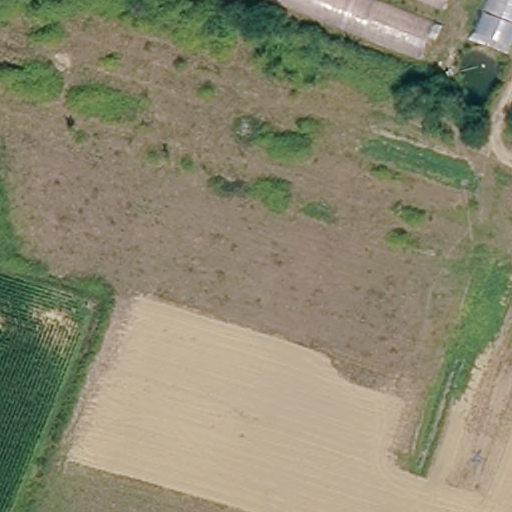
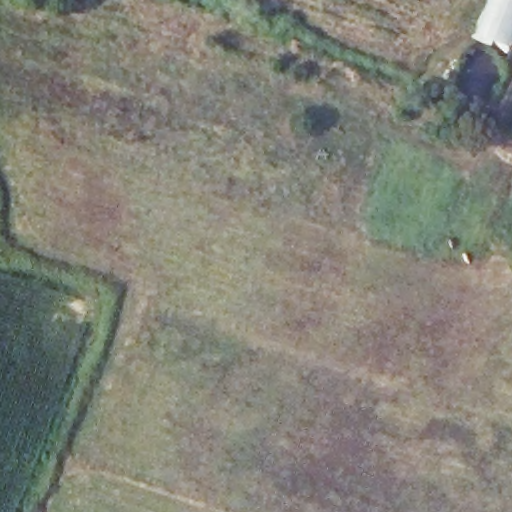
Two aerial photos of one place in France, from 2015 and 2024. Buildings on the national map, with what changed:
demolished [(379,0),(438,21),(424,59),(273,0),(379,0)]
demolished [(449,0),(446,10),(422,0),(449,0)]
unchanged [(479,35),(494,0),(512,0),(512,49),(479,35)]

